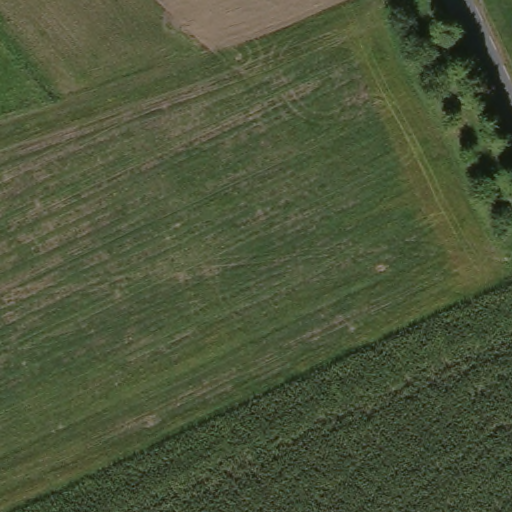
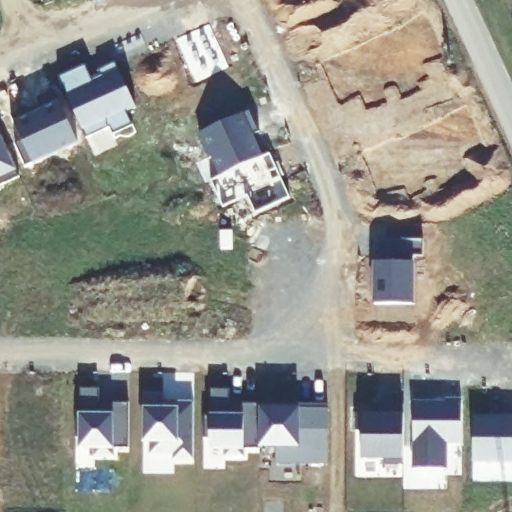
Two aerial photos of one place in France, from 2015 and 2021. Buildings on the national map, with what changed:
new [(86,62),(93,77),(101,74),(98,67),(116,59),(135,102),(126,106),(132,120),(112,129),(109,121),(86,132),(59,74),(86,62)]
new [(29,105),(33,115),(43,110),(38,97),(55,89),(80,145),(28,169),(17,144),(24,140),(12,114),(29,105)]
new [(248,110),(258,131),(248,135),(258,156),(218,175),(207,156),(210,155),(197,132),(248,110)]
new [(19,174),(0,183),(0,131),(19,174)]
new [(376,260),(391,260),(391,236),(424,237),(424,254),(414,254),(414,302),(375,302),(376,260)]
new [(77,402),(81,402),(81,388),(100,388),(100,402),(130,403),(130,448),(114,448),(114,456),(96,456),(96,448),(81,448),(81,438),(77,438),(77,402)]
new [(204,415),(211,415),(211,389),(230,389),(230,407),(243,407),(243,403),(260,403),(260,405),(260,446),(260,450),(244,450),(244,457),(225,457),(226,449),(210,449),(210,439),(204,439),(204,415)]
new [(147,395),(166,395),(166,408),(180,409),(179,402),(195,402),(195,457),(175,457),(175,452),(152,451),(152,439),(146,440),(147,395)]
new [(413,413),(445,413),(445,397),(461,397),(461,440),(446,440),(445,465),(412,465),(413,413)]
new [(355,411),(383,411),(383,401),(403,401),(402,461),(383,461),(383,456),(361,455),(361,427),(355,427),(355,411)]
new [(285,405),(330,405),(330,410),(329,463),(277,463),(278,446),(260,446),(260,405),(285,405)]
new [(512,416),(512,459),(473,459),(473,415),(512,416)]

